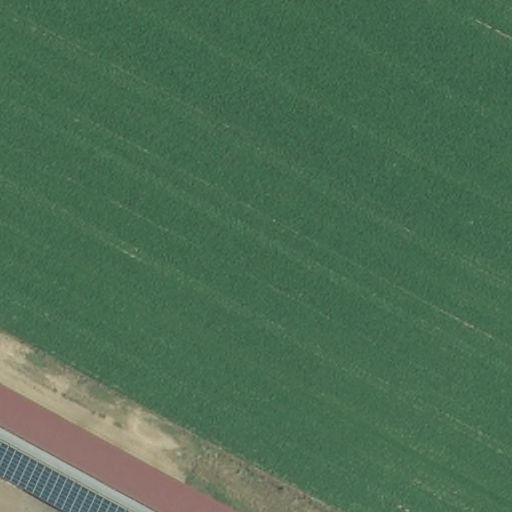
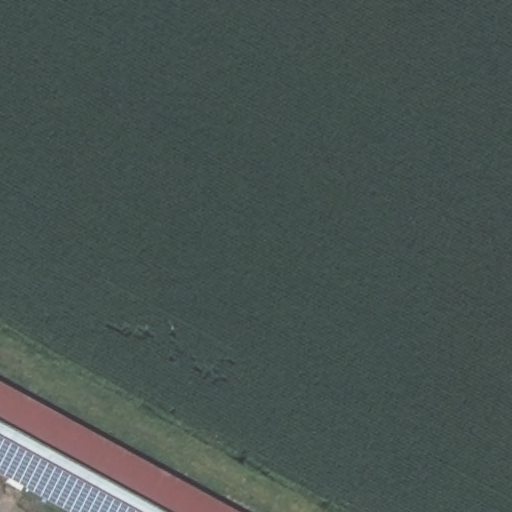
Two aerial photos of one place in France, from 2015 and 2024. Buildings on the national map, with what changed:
unchanged [(0,470),(0,387),(230,512),(76,512),(0,470)]

